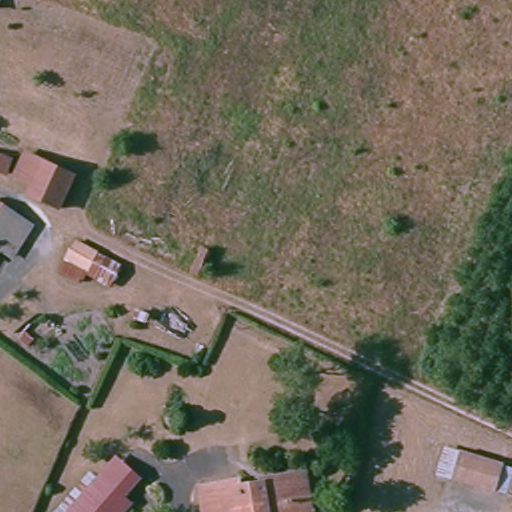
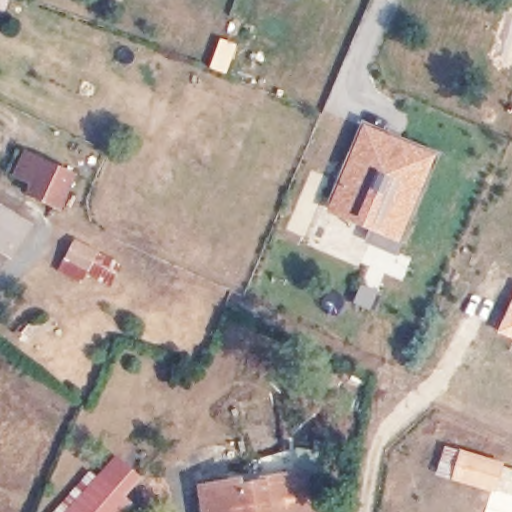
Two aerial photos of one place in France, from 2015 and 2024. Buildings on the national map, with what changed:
new [(219,37),(236,44),(225,74),(208,67),(219,37)]
new [(436,155),(396,255),(363,242),(369,230),(325,211),(364,125),(436,155)]
unchanged [(29,192),(34,183),(17,175),(28,152),(44,160),(77,175),(61,208),(29,192)]
unchanged [(8,175),(0,171),(0,153),(15,160),(8,175)]
unchanged [(12,213),(33,226),(14,256),(2,249),(1,249),(0,251),(0,205),(12,213)]
unchanged [(59,273),(76,243),(121,268),(112,285),(87,270),(78,285),(59,273)]
new [(512,339),(496,331),(512,297),(512,339)]
unchanged [(449,477),(458,452),(475,459),(512,472),(512,476),(504,499),(467,483),(449,477)]
unchanged [(119,456),(134,469),(117,488),(132,501),(124,512),(71,512),(102,475),(119,456)]
unchanged [(241,485),(243,494),(295,483),(303,482),(309,512),(207,512),(203,493),(241,485)]
unchanged [(68,512),(60,512),(63,508),(68,512)]

